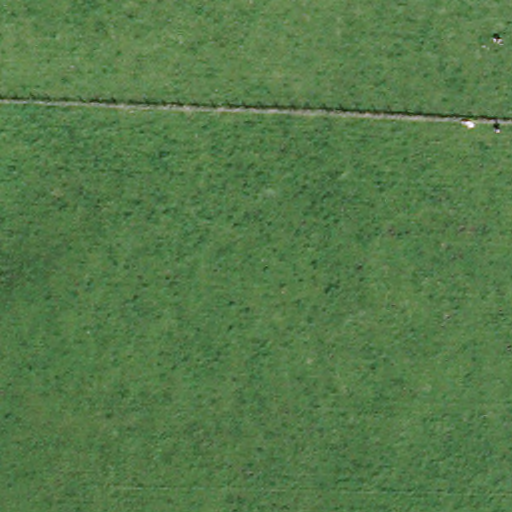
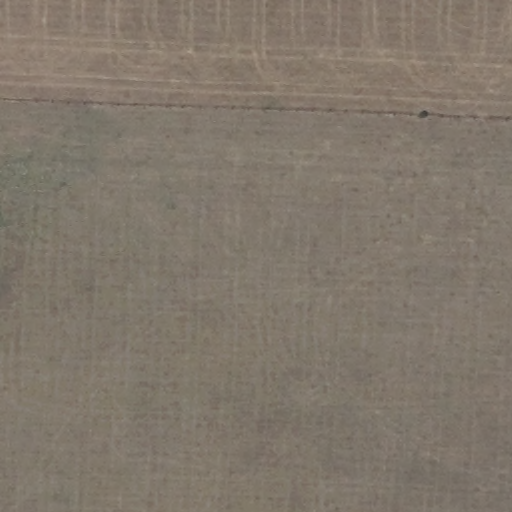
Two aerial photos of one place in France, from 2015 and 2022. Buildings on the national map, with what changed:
[]

